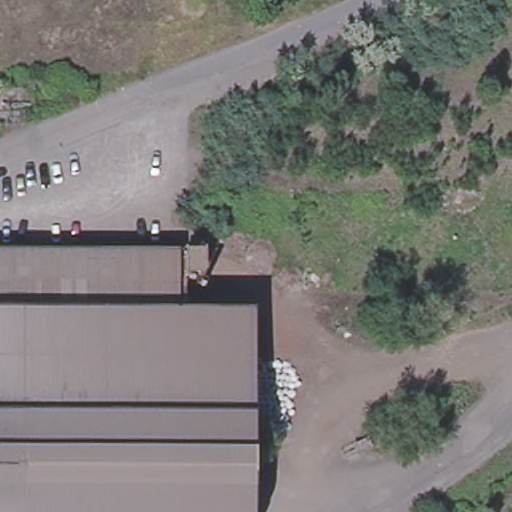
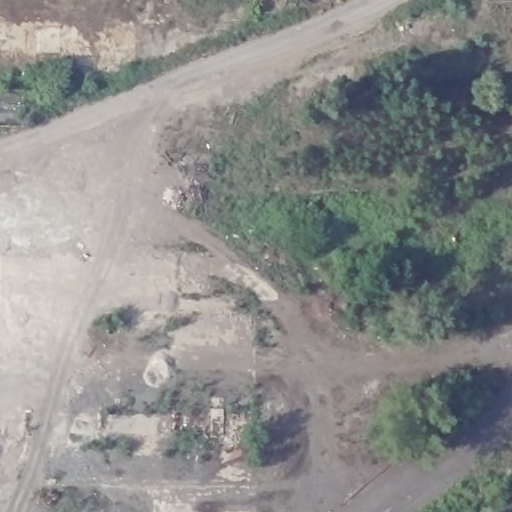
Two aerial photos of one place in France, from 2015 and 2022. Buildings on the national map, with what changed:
unchanged [(0,131),(0,90),(25,92),(25,130),(0,131)]
demolished [(178,316),(252,317),(252,512),(0,512),(0,255),(178,255),(178,316)]

